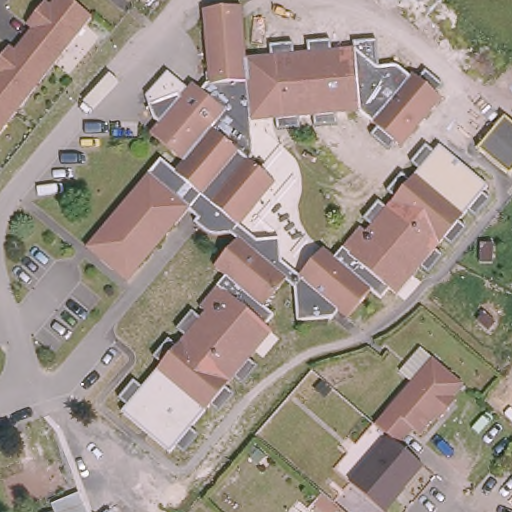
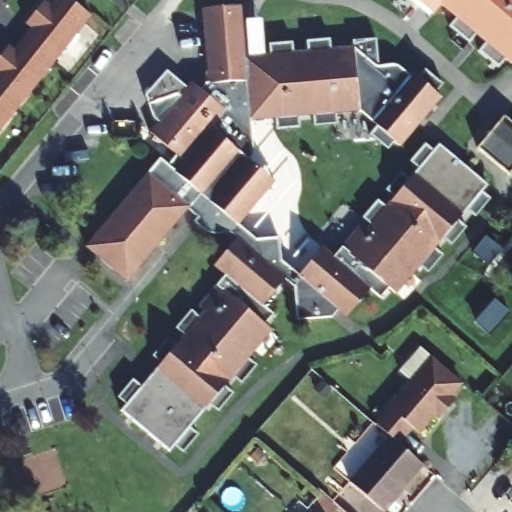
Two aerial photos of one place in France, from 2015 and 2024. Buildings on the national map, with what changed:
unchanged [(27,32),(35,21),(30,17),(43,0),(47,0),(50,2),(52,0),(84,0),(95,9),(57,57),(27,32)]
unchanged [(253,153),(251,157),(252,158),(257,162),(260,166),(263,171),(265,177),(265,183),(265,189),(263,194),(260,200),(255,204),(235,187),(229,181),(218,172),(212,166),(205,161),(188,146),(182,141),(165,126),(161,122),(165,117),(155,109),(150,95),(180,84),(183,87),(194,75),(198,79),(202,82),(207,76),(210,75),(210,64),(205,1),(214,0),(241,0),(247,50),(273,47),(277,42),(281,47),(284,47),(288,41),(293,46),(314,44),(317,39),(322,44),(325,43),(328,38),(333,42),(355,40),(370,52),(370,53),(373,56),(377,57),(385,59),(395,62),(405,67),(413,73),(415,71),(444,95),(402,143),(360,110),(360,105),(346,106),(346,109),(270,117),(252,118),(255,145),(255,149),(253,153)]
new [(500,65),(480,51),(487,44),(476,35),(469,42),(450,27),(457,19),(442,5),(434,14),(417,0),(512,0),(512,64),(505,59),(500,65)]
unchanged [(57,57),(22,101),(0,83),(0,66),(3,62),(0,60),(0,55),(12,40),(17,44),(27,32),(57,57)]
unchanged [(22,101),(0,130),(0,83),(22,101)]
unchanged [(475,147),(502,114),(512,122),(512,166),(506,172),(475,147)]
unchanged [(258,348),(210,407),(161,367),(208,308),(203,303),(230,273),(218,263),(240,237),(232,231),(212,229),(207,226),(197,218),(200,215),(190,207),(129,278),(88,245),(162,157),(173,166),(185,152),(157,127),(161,122),(165,126),(182,141),(188,146),(205,161),(212,166),(218,172),(229,181),(235,187),(255,204),(240,222),(258,238),(281,236),(283,258),(302,273),(317,256),(352,286),(365,297),(351,315),(342,307),(337,314),(300,318),(298,286),(288,277),(258,313),(268,322),(275,328),(258,348)]
unchanged [(417,172),(440,145),(488,185),(466,214),(417,172)]
unchanged [(392,285),(383,295),(374,287),(365,297),(352,286),(317,256),(325,246),(337,256),(362,225),(368,230),(417,172),(466,214),(416,272),(400,291),(392,285)]
unchanged [(390,433),(377,422),(412,381),(400,371),(420,348),(460,382),(445,399),(450,405),(440,417),(435,414),(420,432),(413,426),(400,442),(390,433)]
unchanged [(166,449),(108,403),(129,377),(142,388),(161,367),(203,402),(166,449)]
unchanged [(382,507),(350,478),(390,433),(400,442),(422,462),(382,507)]

